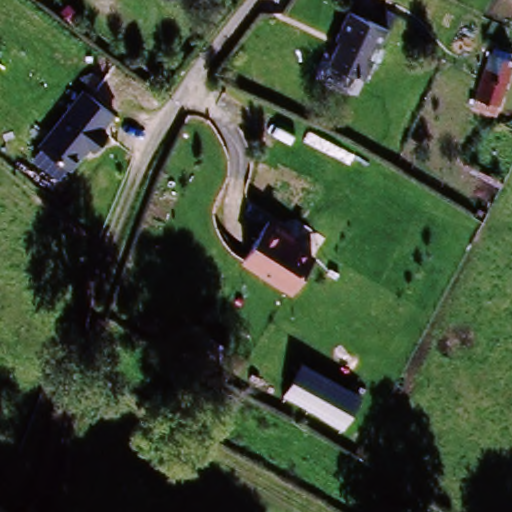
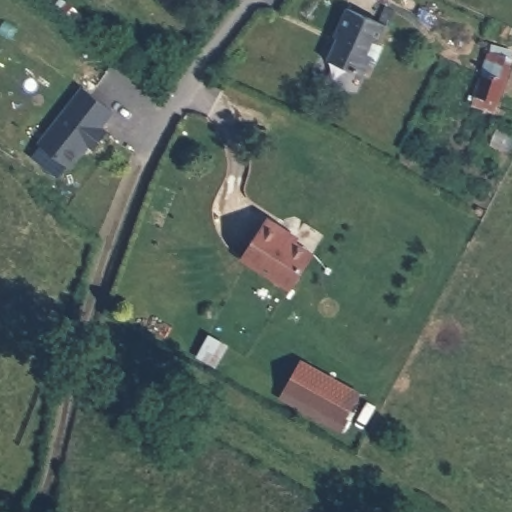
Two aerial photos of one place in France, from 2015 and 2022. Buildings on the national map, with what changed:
unchanged [(367,77),(329,61),(337,37),(335,31),(347,5),(387,22),(382,40),(387,44),(380,61),(373,60),(367,77)]
unchanged [(490,40),(510,44),(497,106),(477,101),(490,40)]
unchanged [(87,102),(105,117),(93,131),(100,137),(87,153),(81,149),(63,171),(33,147),(76,94),(87,102)]
unchanged [(239,263),(264,227),(278,237),(275,240),(307,262),(285,295),(239,263)]
unchanged [(360,396),(342,428),(282,395),(300,360),(360,396)]

